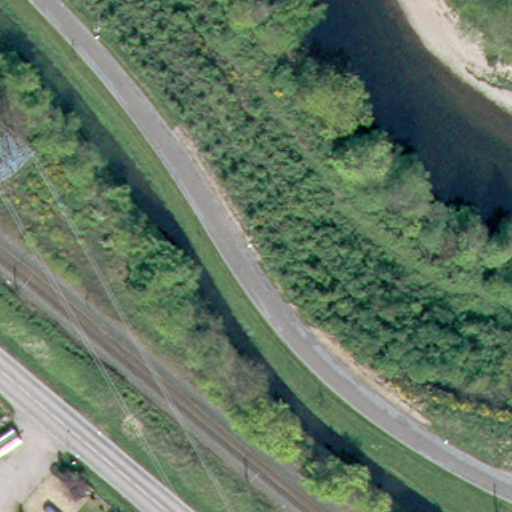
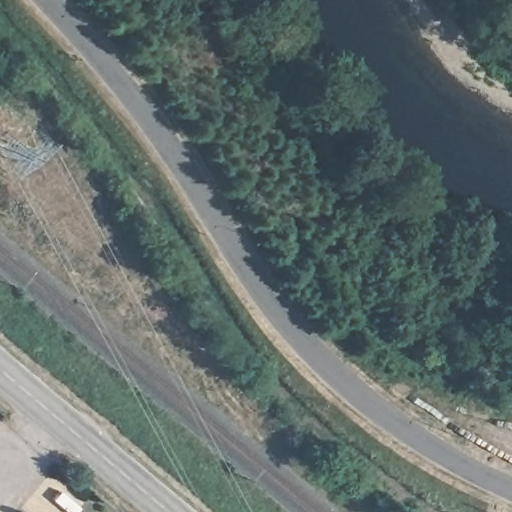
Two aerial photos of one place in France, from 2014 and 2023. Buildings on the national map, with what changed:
[]

